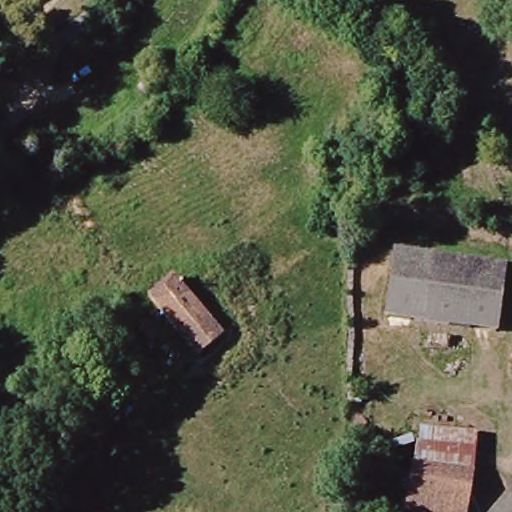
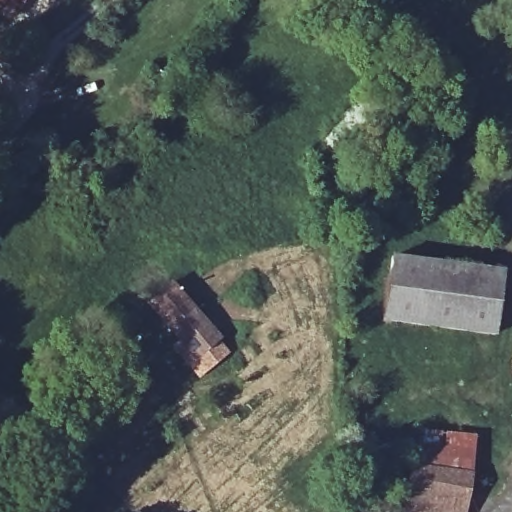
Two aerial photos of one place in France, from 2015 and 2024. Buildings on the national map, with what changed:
unchanged [(1,0),(25,0),(19,10),(1,0)]
unchanged [(503,268),(496,334),(393,322),(400,255),(503,268)]
unchanged [(232,343),(209,365),(151,304),(175,279),(187,290),(200,279),(232,311),(216,326),(232,343)]
unchanged [(480,440),(477,464),(420,454),(425,431),(480,440)]
unchanged [(477,464),(469,512),(463,512),(412,504),(420,454),(477,464)]

